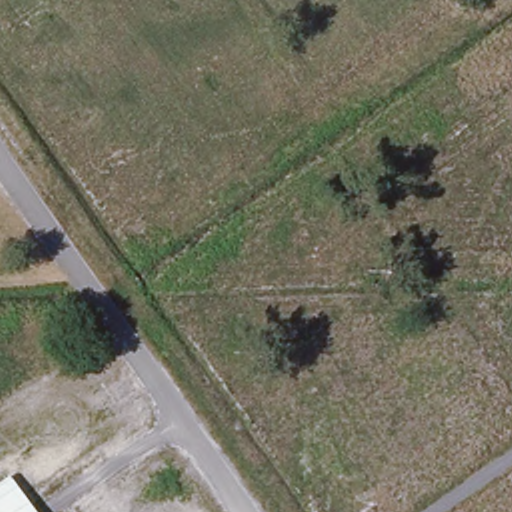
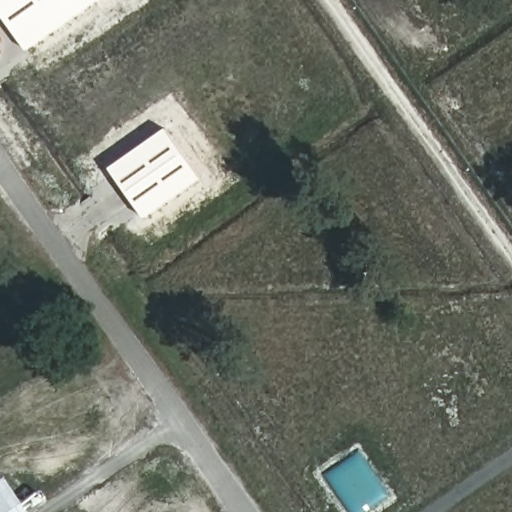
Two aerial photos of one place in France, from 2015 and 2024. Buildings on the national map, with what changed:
new [(33,51),(0,5),(0,0),(104,0),(33,51)]
new [(164,130),(197,178),(150,213),(111,163),(164,130)]
unchanged [(0,512),(0,481),(2,479),(25,512),(0,512)]

